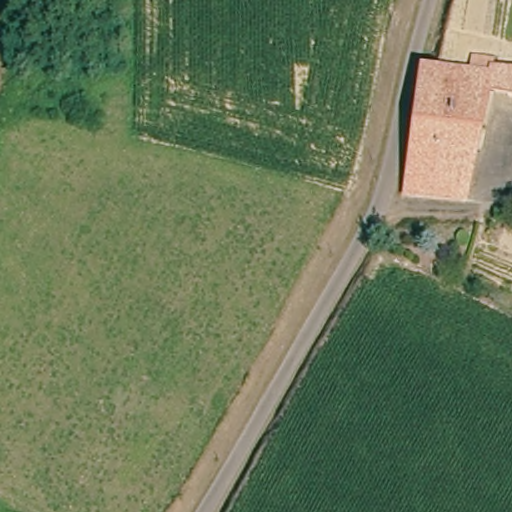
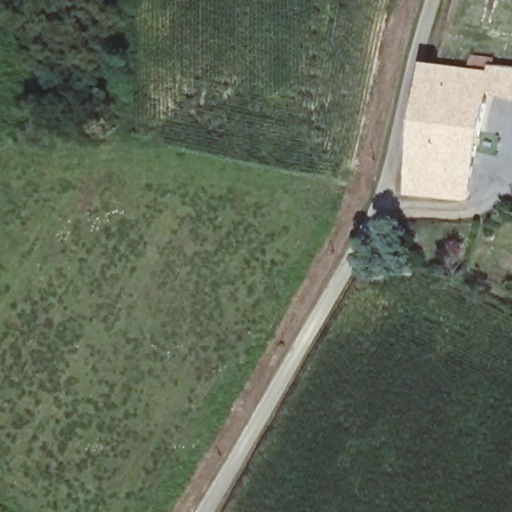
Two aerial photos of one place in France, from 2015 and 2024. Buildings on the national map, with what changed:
unchanged [(500,65),(512,67),(512,99),(487,96),(468,201),(408,191),(416,146),(427,65),(497,75),(500,65)]

